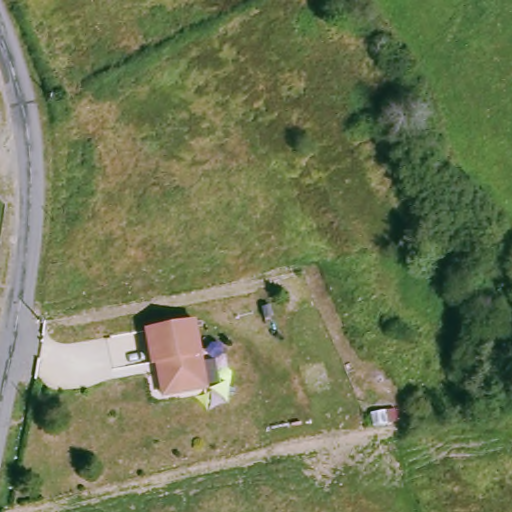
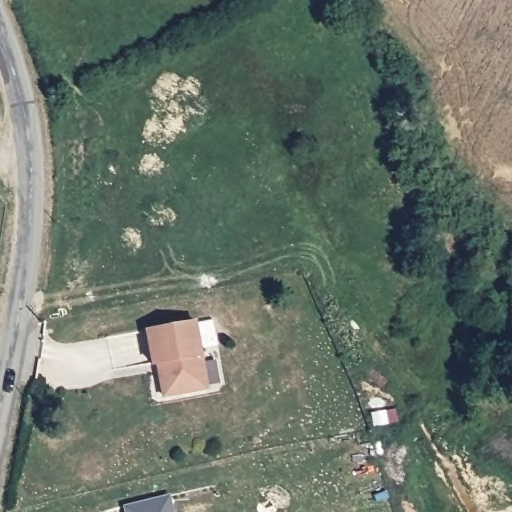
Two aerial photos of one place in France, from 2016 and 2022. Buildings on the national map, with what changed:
unchanged [(208,386),(165,395),(158,361),(154,362),(148,329),(196,320),(208,386)]
new [(124,507),(170,495),(174,512),(125,512),(124,507)]

